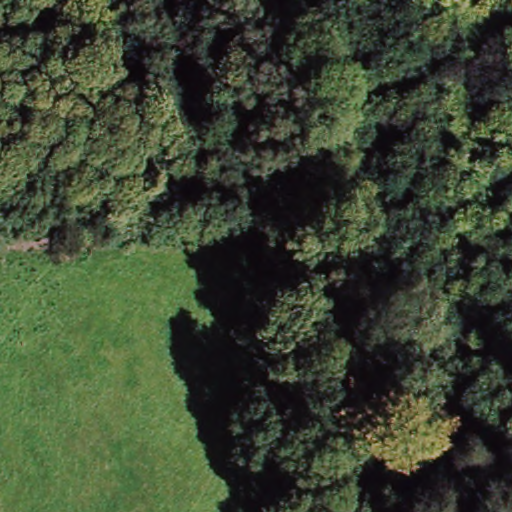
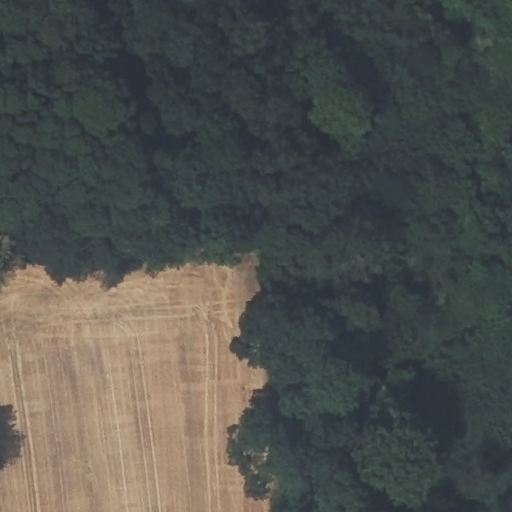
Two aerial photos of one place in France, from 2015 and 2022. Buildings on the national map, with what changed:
[]

